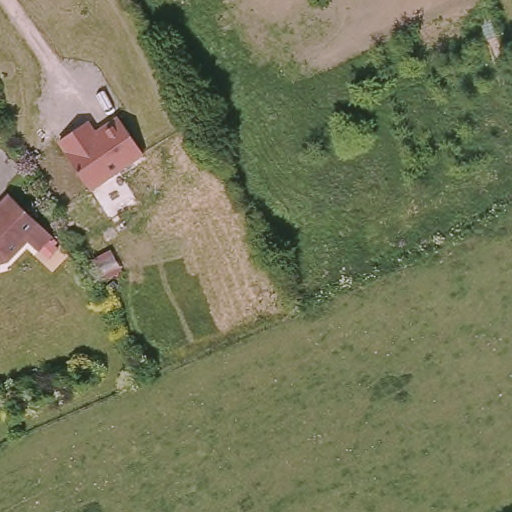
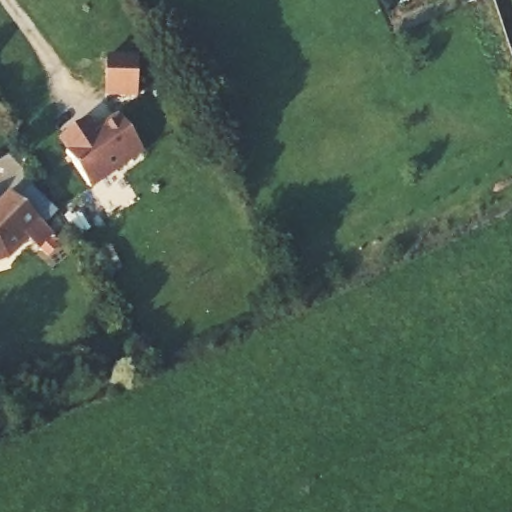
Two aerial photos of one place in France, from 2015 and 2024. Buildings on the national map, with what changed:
new [(107,57),(139,59),(137,96),(105,95),(107,57)]
unchanged [(87,120),(96,132),(120,116),(144,151),(90,187),(66,152),(69,150),(60,137),(78,126),(87,120)]
unchanged [(58,240),(44,255),(39,250),(32,244),(12,264),(0,267),(0,213),(14,199),(58,240)]

